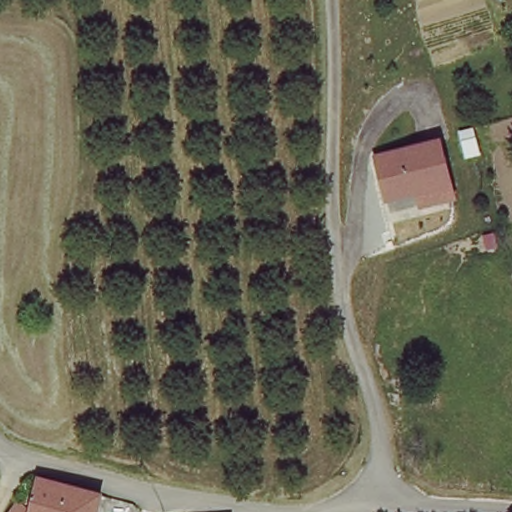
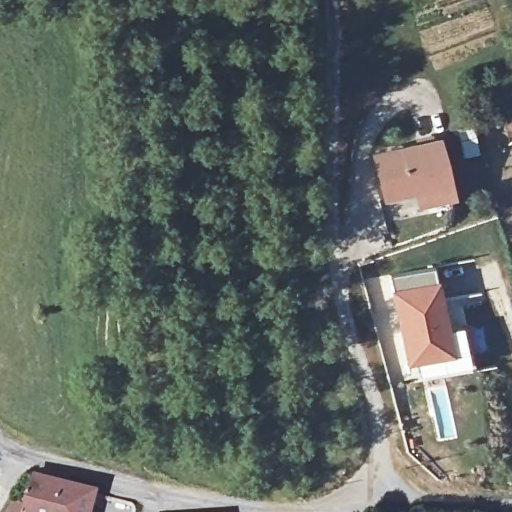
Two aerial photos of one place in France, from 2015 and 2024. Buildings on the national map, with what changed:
unchanged [(438,140),(448,179),(386,196),(376,157),(438,140)]
new [(453,355),(405,364),(392,290),(390,277),(432,267),(437,281),(453,355)]
unchanged [(96,512),(0,512),(0,508),(11,490),(25,494),(30,472),(101,493),(96,512)]

